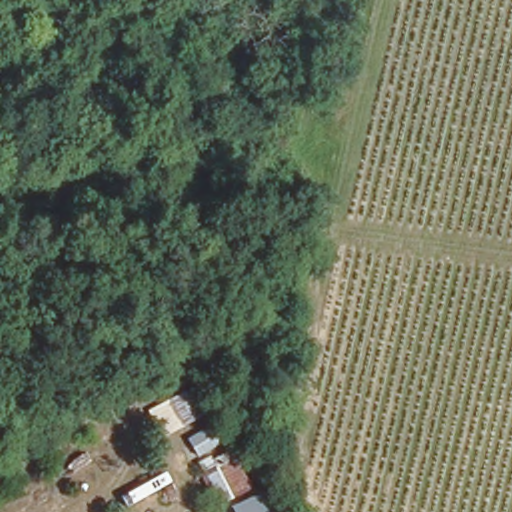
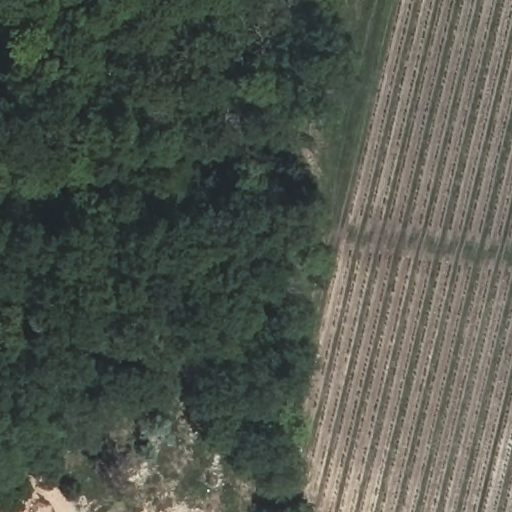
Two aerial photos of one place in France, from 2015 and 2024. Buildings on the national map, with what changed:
unchanged [(167,404),(195,389),(209,416),(181,431),(167,404)]
unchanged [(187,440),(216,426),(226,443),(195,458),(187,440)]
unchanged [(215,463),(214,461),(230,452),(250,489),(216,507),(199,472),(215,463)]
unchanged [(172,485),(177,496),(170,500),(165,489),(172,485)]
unchanged [(231,512),(230,510),(274,489),(287,511),(284,512),(231,512)]

